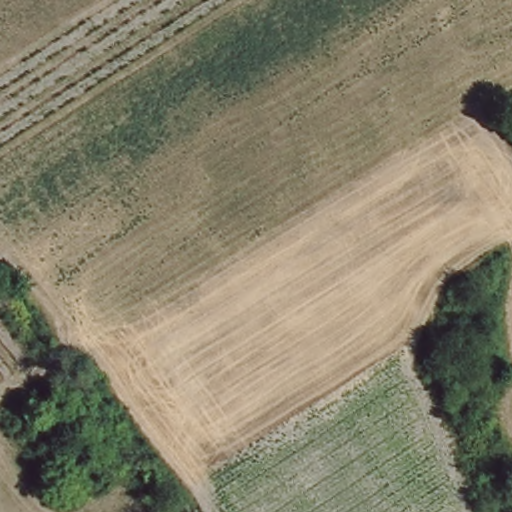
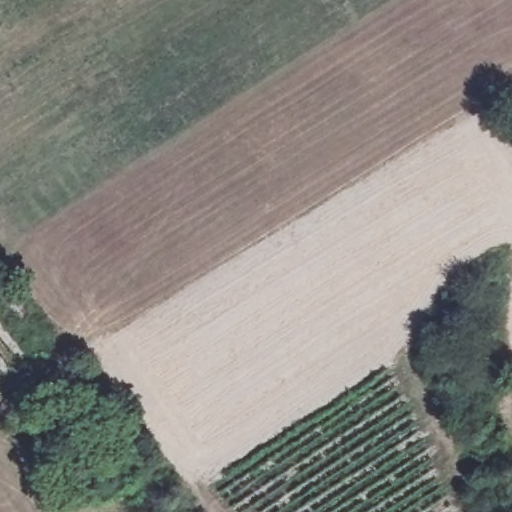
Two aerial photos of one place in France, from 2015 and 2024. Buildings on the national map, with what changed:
[]

